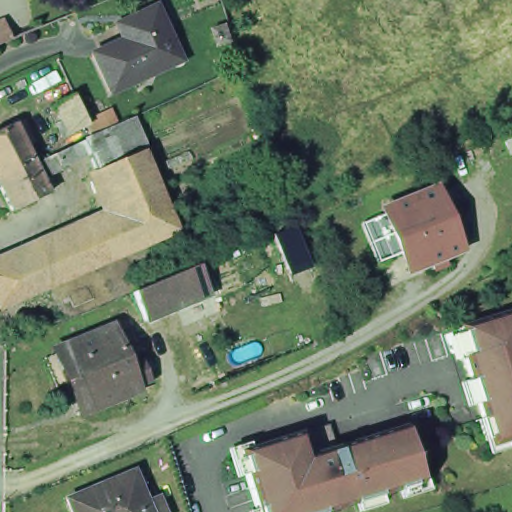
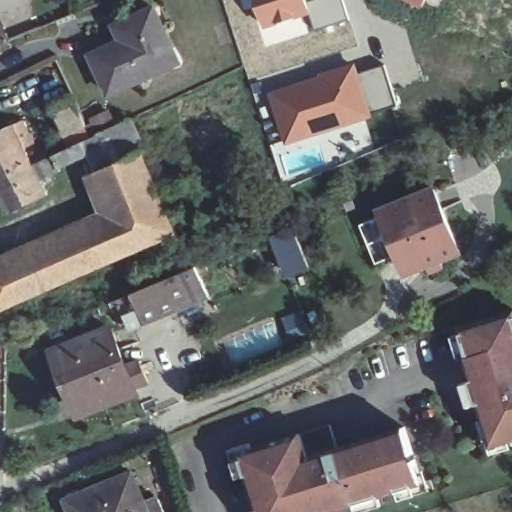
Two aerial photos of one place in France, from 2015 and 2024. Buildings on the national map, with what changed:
unchanged [(105,87),(87,49),(118,34),(111,18),(120,14),(149,0),(151,0),(170,40),(175,54),(144,69),(105,87)]
new [(265,26),(256,0),(306,0),(310,12),(265,26)]
new [(405,0),(428,0),(423,8),(405,0)]
unchanged [(0,26),(5,23),(12,38),(0,43),(0,26)]
new [(356,59),(360,71),(373,114),(285,144),(267,90),(356,59)]
new [(385,62),(399,104),(373,114),(360,71),(385,62)]
unchanged [(75,93),(89,122),(63,134),(57,119),(61,117),(54,103),(75,93)]
unchanged [(30,164),(132,119),(177,243),(0,318),(0,259),(95,218),(85,185),(5,219),(0,212),(0,125),(7,119),(30,164)]
new [(472,143),(484,167),(457,181),(447,155),(472,143)]
unchanged [(378,228),(392,223),(385,206),(435,185),(460,246),(442,254),(445,261),(432,266),(430,259),(410,267),(402,248),(390,254),(378,228)]
new [(272,236),(295,228),(311,267),(288,277),(272,236)]
unchanged [(142,323),(130,295),(139,291),(134,279),(155,270),(161,282),(195,268),(203,265),(208,275),(199,279),(207,298),(142,323)]
unchanged [(470,404),(456,361),(460,359),(452,330),(507,313),(512,330),(512,438),(488,445),(480,420),(475,422),(470,404)]
unchanged [(81,410),(82,410),(77,398),(70,380),(57,385),(46,357),(58,352),(57,349),(112,325),(128,363),(142,358),(150,378),(137,383),(138,388),(90,409),(85,411),(85,412),(82,413),(81,410)]
unchanged [(334,450),(401,429),(418,485),(332,512),(255,512),(237,454),(327,426),(334,450)]
unchanged [(58,495),(124,467),(137,497),(148,492),(157,512),(65,512),(58,495)]

